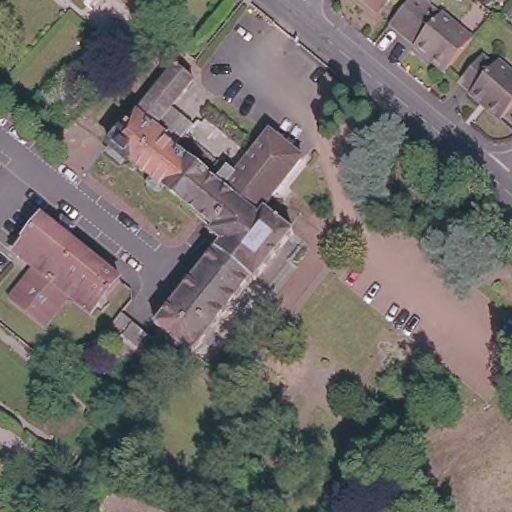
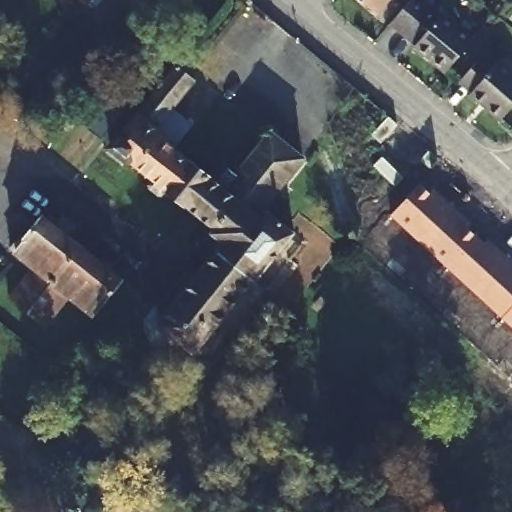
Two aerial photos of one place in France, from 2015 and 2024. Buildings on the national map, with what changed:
unchanged [(147,0),(144,4),(139,0),(147,0)]
unchanged [(360,0),(383,0),(374,12),(360,0)]
unchanged [(394,29),(413,7),(418,0),(426,0),(434,7),(477,42),(451,76),(394,29)]
unchanged [(497,65),(501,61),(512,71),(512,107),(502,118),(460,82),(484,54),(497,65)]
unchanged [(159,367),(144,355),(154,342),(163,331),(155,325),(221,244),(210,235),(214,229),(166,191),(162,195),(158,195),(149,190),(148,185),(153,180),(133,165),(136,162),(130,157),(126,162),(110,149),(138,113),(141,115),(156,97),(146,90),(164,70),(172,76),(179,67),(194,80),(188,88),(209,107),(173,152),(223,195),(271,135),(304,161),(257,217),(261,219),(266,212),(295,235),(236,307),(233,306),(218,325),(213,330),(215,343),(204,356),(192,356),(188,352),(184,357),(170,346),(165,351),(169,355),(159,367)]
new [(512,327),(389,215),(424,180),(512,262),(512,327)]
unchanged [(50,319),(48,321),(43,327),(10,300),(35,268),(34,267),(33,268),(12,250),(23,237),(28,240),(44,219),(55,227),(63,219),(75,228),(67,237),(81,249),(34,306),(50,319)]
unchanged [(34,306),(81,249),(119,279),(120,280),(91,316),(68,296),(50,319),(34,306)]
unchanged [(103,335),(120,313),(134,325),(149,337),(129,362),(126,359),(115,372),(103,362),(116,346),(103,335)]
unchanged [(121,386),(136,399),(121,419),(81,387),(80,386),(72,379),(90,357),(100,365),(92,375),(88,379),(111,397),(121,386)]
demolished [(80,490),(88,480),(94,469),(101,473),(115,482),(108,493),(101,503),(80,490)]

